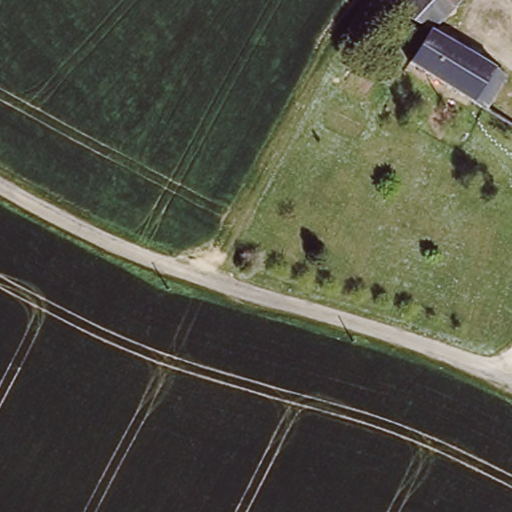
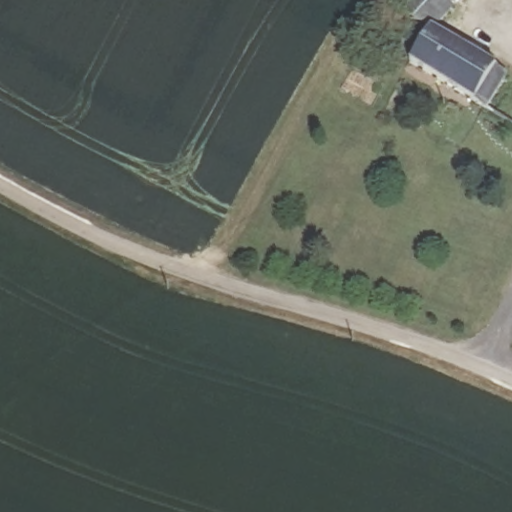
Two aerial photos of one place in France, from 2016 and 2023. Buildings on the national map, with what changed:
unchanged [(499,66),(495,73),(506,80),(490,106),(415,60),(434,28),(402,9),(410,0),(462,0),(437,27),(499,66)]

